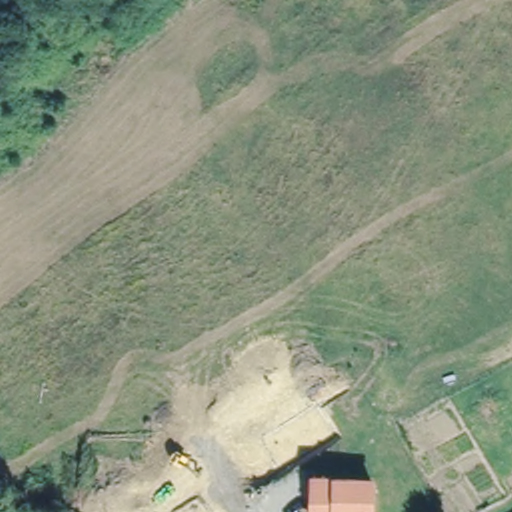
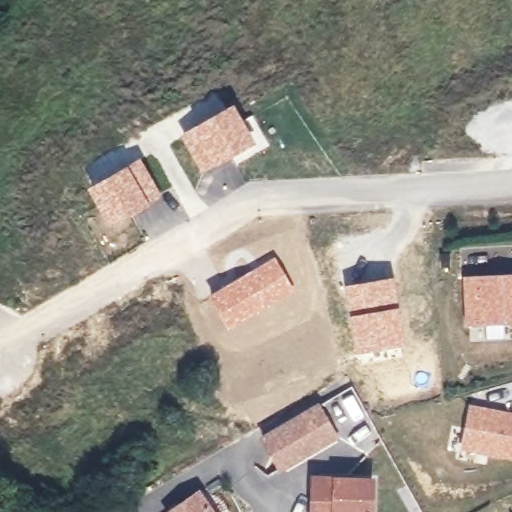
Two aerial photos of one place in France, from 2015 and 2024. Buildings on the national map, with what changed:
new [(256,141),(216,165),(204,170),(180,134),(194,125),(233,104),(256,141)]
new [(126,166),(141,158),(163,196),(149,204),(110,226),(87,188),(126,166)]
new [(275,255),(294,291),(227,328),(208,295),(275,255)]
new [(512,273),(512,323),(466,326),(463,276),(512,273)]
new [(394,276),(406,344),(355,354),(344,284),(394,276)]
unchanged [(317,403),(336,434),(281,466),(263,436),(317,403)]
new [(512,413),(512,459),(462,449),(470,404),(512,413)]
unchanged [(374,478),(372,512),(314,512),(316,476),(374,478)]
unchanged [(214,512),(171,512),(201,492),(214,512)]

